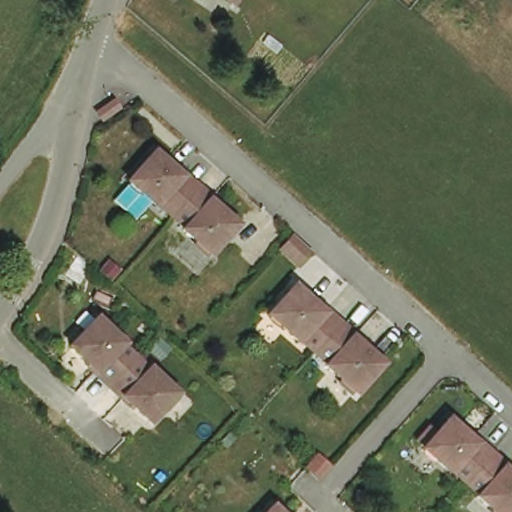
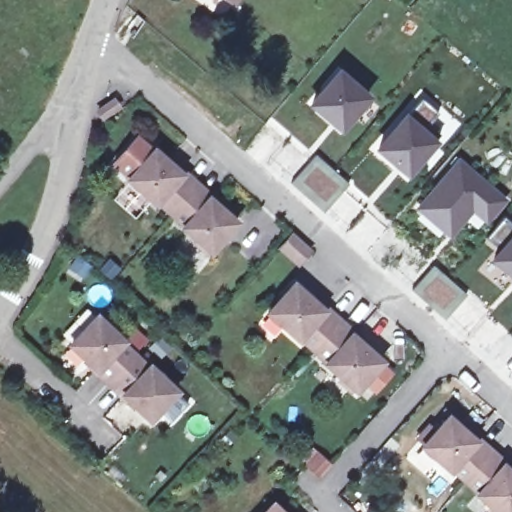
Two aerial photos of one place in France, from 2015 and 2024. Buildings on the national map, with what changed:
new [(338,72),(367,97),(340,130),(311,105),(338,72)]
unchanged [(107,89),(114,96),(99,107),(94,100),(107,89)]
new [(402,119),(422,98),(439,112),(427,125),(440,135),(432,143),(409,175),(378,150),(402,119)]
new [(127,175),(154,199),(156,197),(169,210),(182,221),(181,223),(209,248),(236,220),(241,222),(211,256),(122,179),(109,164),(136,133),(151,150),(127,175)]
unchanged [(181,171),(206,195),(208,194),(236,220),(209,248),(181,223),(182,221),(169,210),(156,197),(154,199),(127,175),(154,146),(166,156),(181,170),(181,171)]
new [(316,152),(349,181),(324,210),(291,180),(316,152)]
new [(456,157),(507,200),(487,225),(471,214),(449,239),(415,210),(456,157)]
new [(496,252),(484,239),(504,216),(512,226),(512,279),(489,260),(496,252)]
new [(433,263),(466,293),(444,318),(411,288),(433,263)]
unchanged [(322,308),(321,310),(348,334),(350,332),(380,360),(353,390),(322,361),(325,360),(297,335),(296,337),(265,310),(292,281),(322,308)]
unchanged [(116,335),(114,337),(140,361),(142,360),(172,390),(145,417),(115,388),(116,386),(90,362),(89,363),(62,338),(90,311),(116,335)]
unchanged [(471,437),(497,460),(500,459),(512,470),(512,508),(508,512),(501,512),(473,487),(475,486),(448,462),(447,464),(419,440),(446,411),(472,435),(471,437)]
unchanged [(258,512),(275,497),(289,512),(258,512)]

